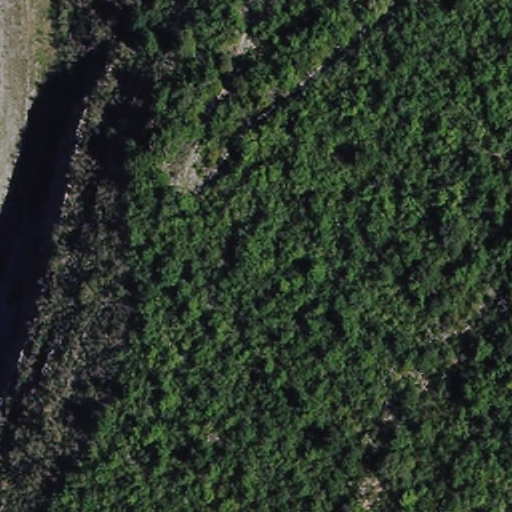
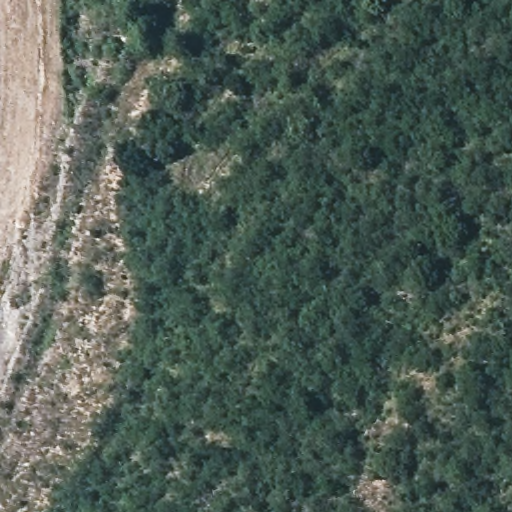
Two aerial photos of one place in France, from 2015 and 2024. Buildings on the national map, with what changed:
[]

